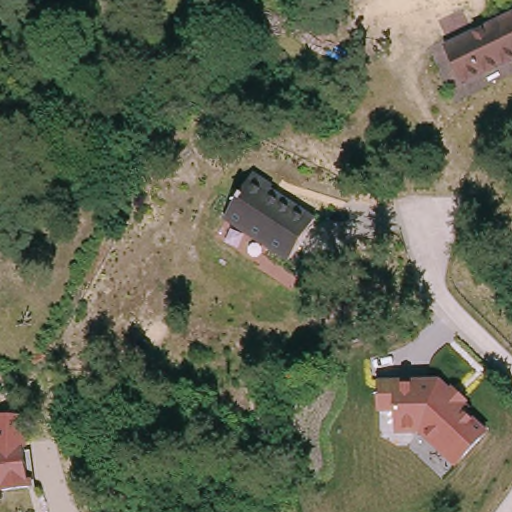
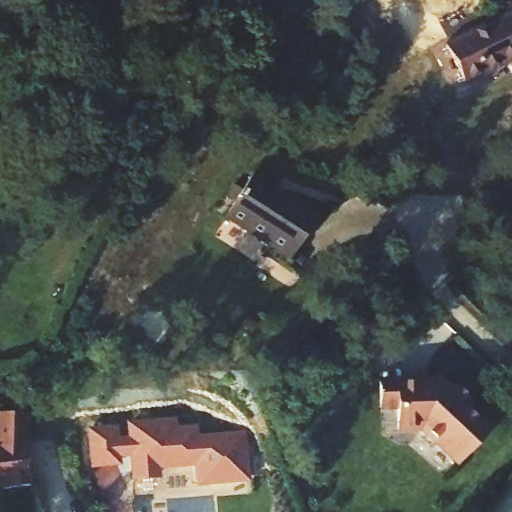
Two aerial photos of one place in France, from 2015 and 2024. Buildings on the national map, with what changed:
unchanged [(443,41),(512,8),(512,55),(459,78),(443,41)]
unchanged [(314,219),(289,259),(225,217),(254,175),(314,219)]
unchanged [(442,378),(451,389),(454,386),(469,401),(467,404),(472,408),(469,411),(489,431),(456,467),(418,433),(396,434),(395,410),(378,411),(378,379),(442,378)]
unchanged [(29,414),(28,448),(23,448),(28,484),(0,489),(0,414),(29,414)]
new [(176,427),(198,426),(199,434),(245,432),(248,481),(195,486),(194,466),(161,468),(161,478),(131,480),(129,456),(120,457),(120,466),(90,469),(88,429),(119,425),(119,437),(128,437),(127,421),(176,417),(176,427)]

